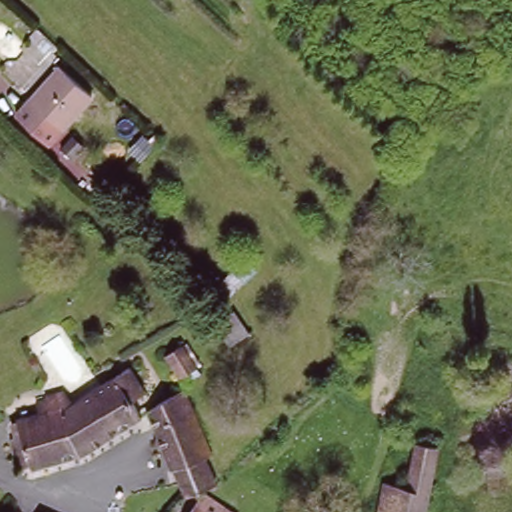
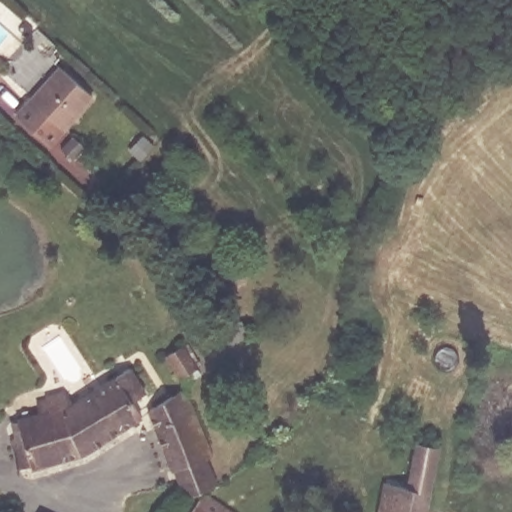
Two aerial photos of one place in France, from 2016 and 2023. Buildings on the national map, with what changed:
unchanged [(92,98),(45,146),(15,117),(62,65),(92,98)]
unchanged [(257,341),(240,354),(219,326),(235,313),(257,341)]
unchanged [(202,365),(191,374),(188,370),(185,372),(170,351),(185,341),(202,365)]
unchanged [(17,473),(7,440),(18,436),(13,421),(35,414),(32,404),(44,400),(47,410),(56,408),(58,412),(129,372),(142,393),(127,402),(137,419),(75,455),(17,473)]
unchanged [(209,458),(200,461),(210,483),(181,496),(145,411),(181,393),(209,458)]
unchanged [(428,512),(386,512),(392,479),(413,483),(422,438),(442,442),(428,512)]
unchanged [(189,512),(201,496),(223,512),(189,512)]

